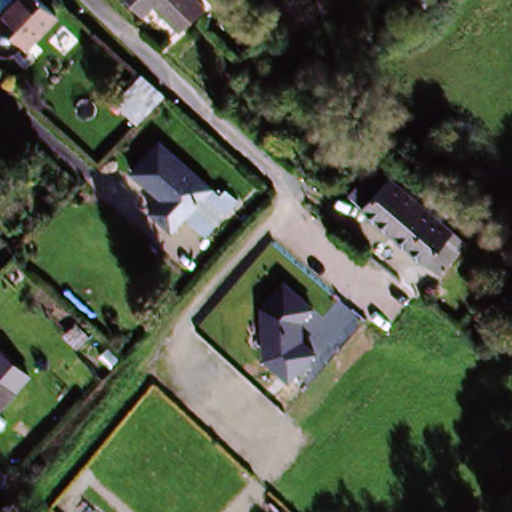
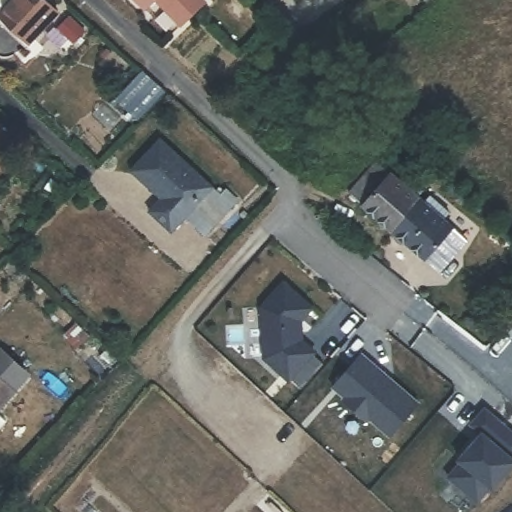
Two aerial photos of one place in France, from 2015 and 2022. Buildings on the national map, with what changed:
unchanged [(35,0),(56,20),(30,48),(0,23),(2,20),(0,18),(0,0),(35,0)]
unchanged [(139,0),(151,0),(145,6),(139,0)]
unchanged [(202,0),(205,3),(187,21),(166,0),(202,0)]
unchanged [(139,60),(158,78),(145,93),(125,75),(139,60)]
unchanged [(130,176),(156,145),(221,203),(198,229),(180,213),(176,215),(166,227),(144,208),(153,198),(130,176)]
unchanged [(375,161),(435,215),(447,226),(461,238),(464,240),(438,273),(347,192),(375,161)]
unchanged [(435,215),(417,198),(426,189),(445,206),(435,215)]
unchanged [(316,307),(304,322),(304,339),(319,351),(288,383),(262,359),(258,304),(284,279),(316,307)]
new [(363,355),(420,404),(390,439),(335,389),(363,355)]
unchanged [(14,393),(0,408),(0,380),(14,393)]
new [(464,461),(487,435),(476,425),(490,410),(512,429),(512,473),(497,490),(495,488),(482,503),(453,478),(466,463),(464,461)]

